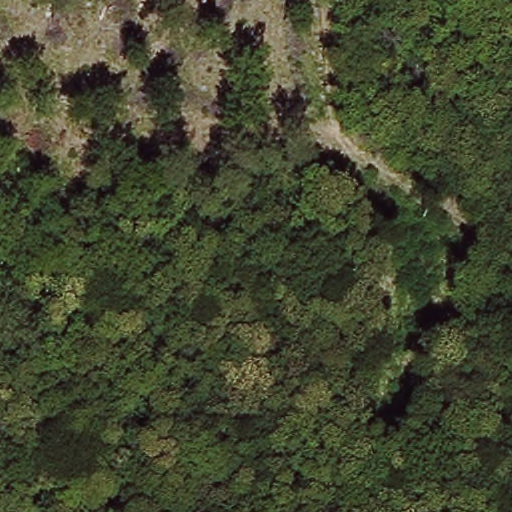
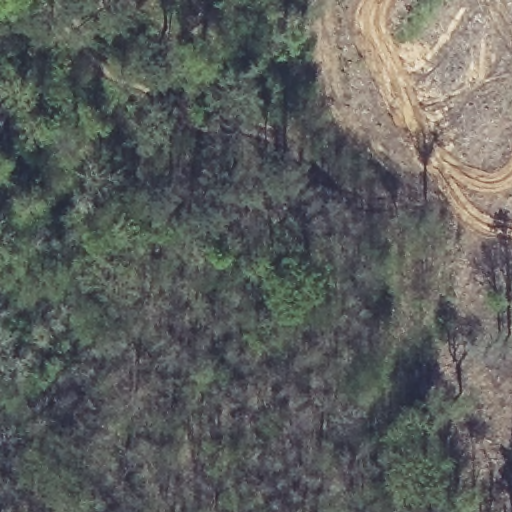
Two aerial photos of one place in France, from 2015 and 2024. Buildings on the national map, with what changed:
[]

